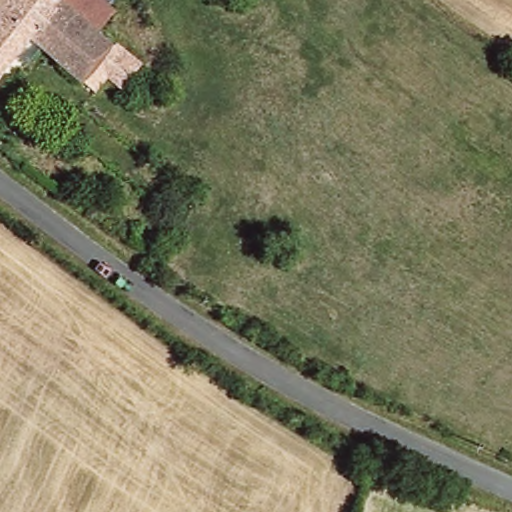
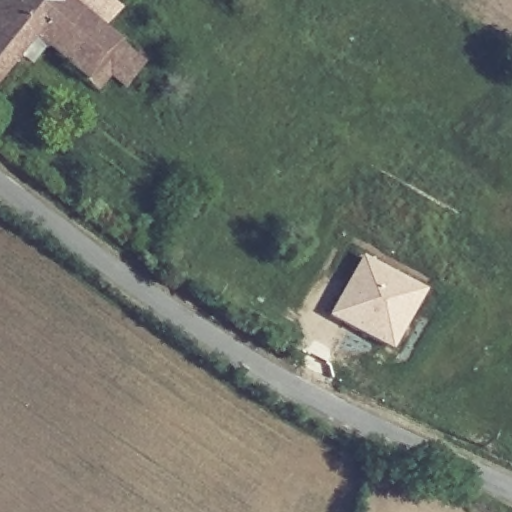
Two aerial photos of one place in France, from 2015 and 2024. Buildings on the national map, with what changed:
unchanged [(124,82),(109,70),(93,90),(31,41),(0,80),(0,0),(67,0),(96,24),(141,60),(124,82)]
unchanged [(96,24),(67,0),(113,0),(114,1),(96,24)]
new [(327,317),(358,259),(421,293),(389,351),(327,317)]

